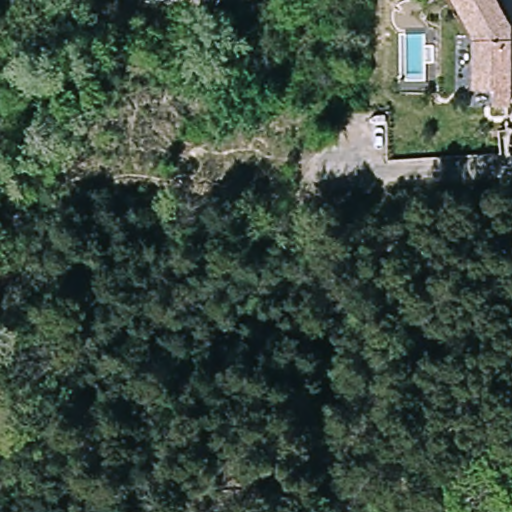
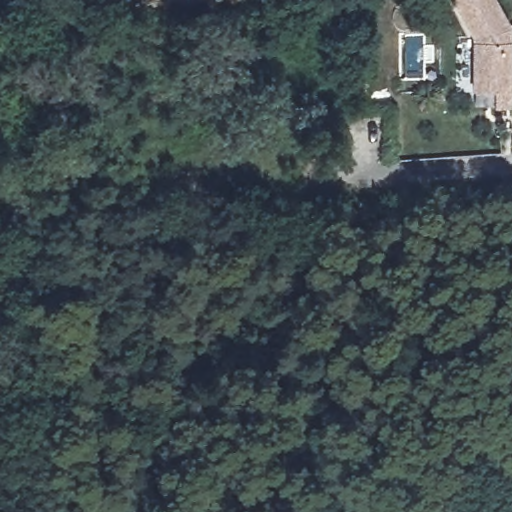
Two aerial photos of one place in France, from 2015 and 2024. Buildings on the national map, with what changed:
unchanged [(512,51),(511,64),(510,106),(495,106),(495,90),(475,90),(476,61),(477,37),(458,0),(498,0),(512,26),(512,51)]

